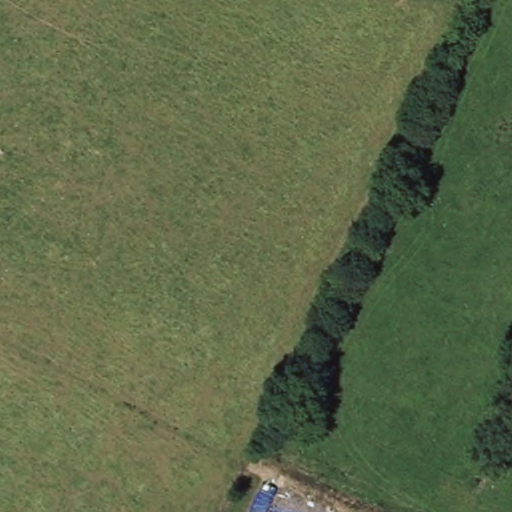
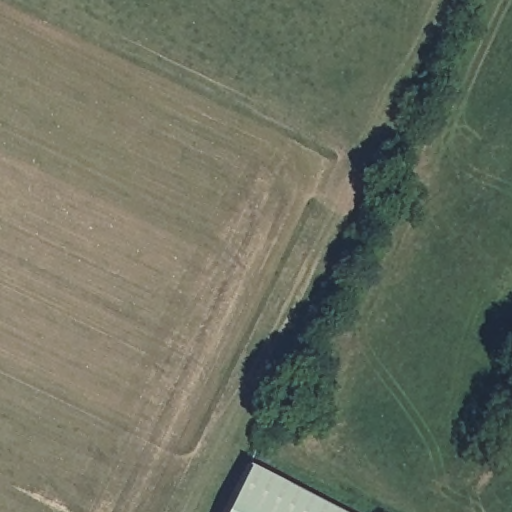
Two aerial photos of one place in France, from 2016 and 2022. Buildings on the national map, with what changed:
new [(249,467),(336,512),(226,512),(249,467)]

